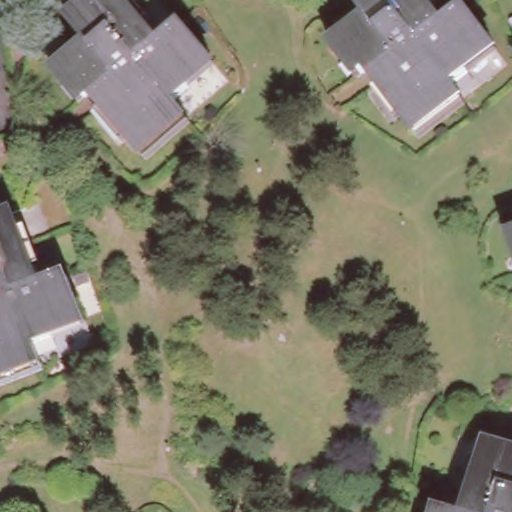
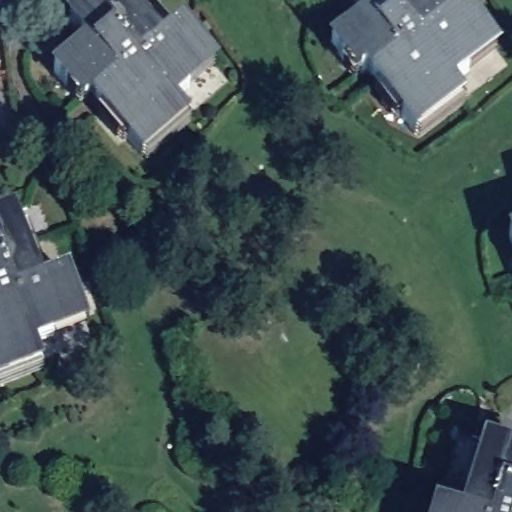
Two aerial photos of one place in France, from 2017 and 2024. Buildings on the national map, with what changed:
unchanged [(68,22),(92,0),(111,0),(126,18),(131,14),(158,43),(178,24),(209,57),(186,79),(191,84),(175,100),(188,115),(146,153),(93,96),(88,101),(73,85),(67,91),(54,77),(88,46),(68,22)]
unchanged [(366,64),(359,69),(344,50),(341,54),(329,39),(366,9),(359,0),(432,0),(444,18),(464,2),(491,39),(464,60),(469,67),(451,80),(462,93),(414,128),(401,110),(391,98),(366,64)]
unchanged [(8,214),(21,250),(28,248),(42,285),(68,275),(83,317),(54,329),(56,334),(35,343),(43,362),(0,378),(0,217),(8,214)]
unchanged [(512,233),(512,249),(507,235),(512,233)]
unchanged [(484,477),(494,441),(512,446),(512,512),(467,512),(478,475),(484,477)]
unchanged [(467,512),(439,512),(442,505),(467,512)]

